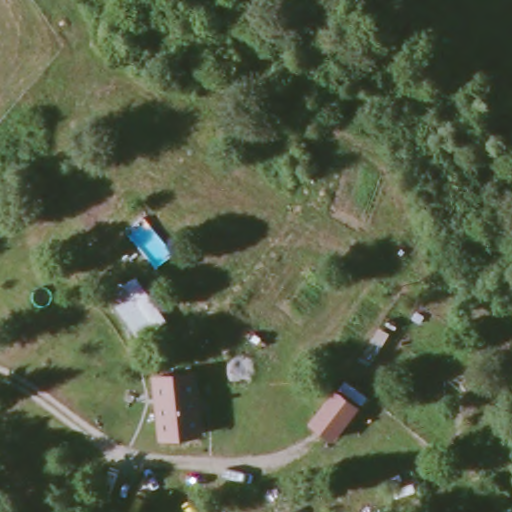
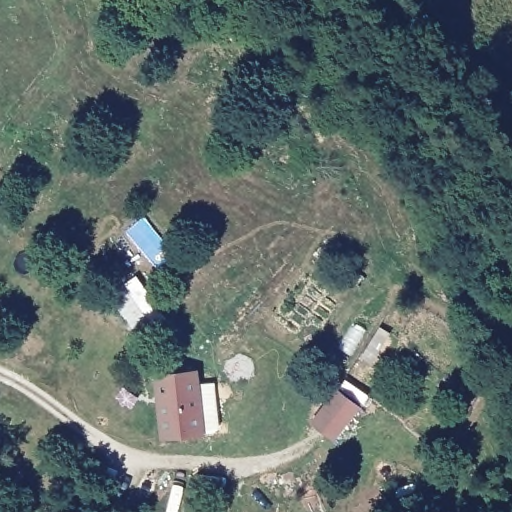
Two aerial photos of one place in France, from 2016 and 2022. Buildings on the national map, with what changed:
unchanged [(171,318),(158,327),(143,338),(108,289),(124,278),(125,280),(138,272),(171,318)]
unchanged [(156,374),(199,370),(205,433),(163,437),(156,374)]
unchanged [(339,389),(360,405),(334,437),(314,422),(339,389)]

